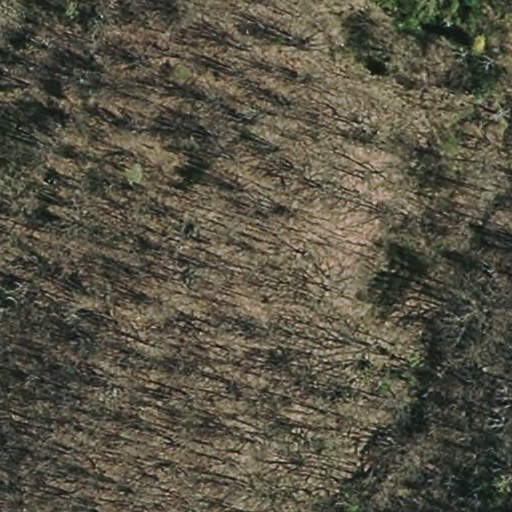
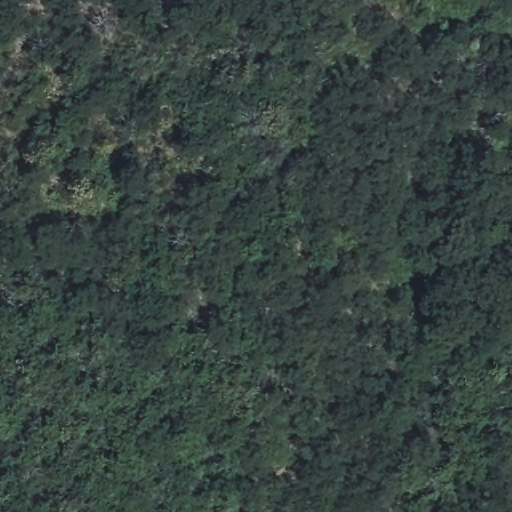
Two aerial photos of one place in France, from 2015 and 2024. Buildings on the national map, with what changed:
[]

